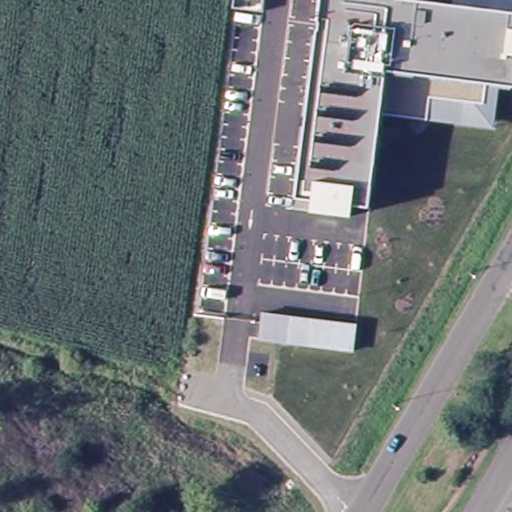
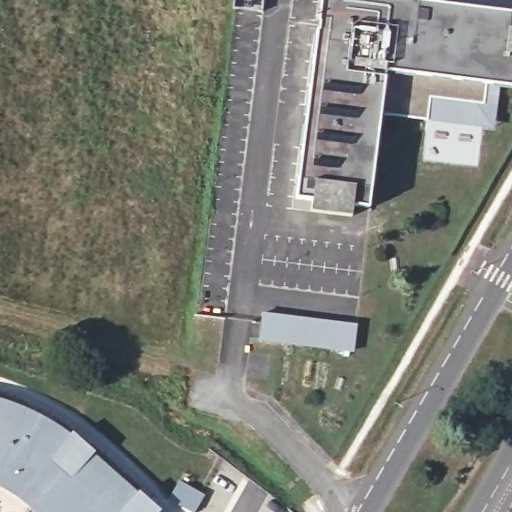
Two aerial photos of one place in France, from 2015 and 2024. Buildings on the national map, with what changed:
unchanged [(318,31),(320,21),(318,21),(321,0),(415,0),(451,5),(452,0),(512,0),(512,86),(500,84),(495,128),(427,120),(380,114),(370,207),(353,205),(352,217),(311,212),(312,199),(296,196),(316,31),(318,31)]
unchanged [(357,324),(354,353),(258,340),(261,312),(357,324)]
new [(21,410),(45,422),(70,439),(144,500),(143,505),(141,504),(133,501),(125,496),(79,455),(72,462),(60,452),(65,445),(54,436),(48,433),(25,421),(11,415),(0,411),(0,403),(1,404),(21,410)]
new [(36,503),(42,496),(30,486),(22,498),(0,481),(0,411),(11,415),(25,421),(48,433),(54,436),(65,445),(60,452),(72,462),(79,455),(125,496),(133,501),(141,504),(143,505),(153,507),(152,512),(46,512),(36,503)]
new [(179,482),(205,496),(195,512),(190,512),(169,500),(179,482)]

